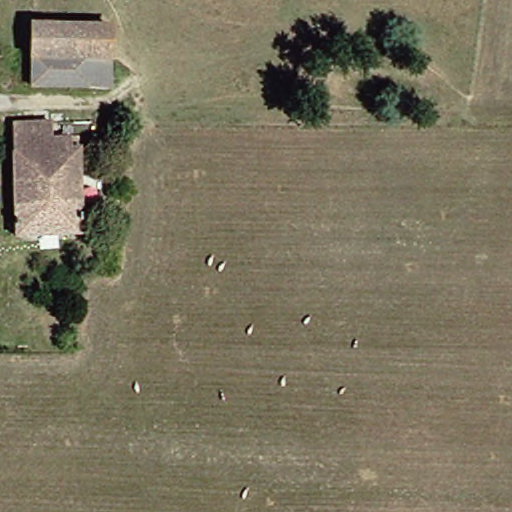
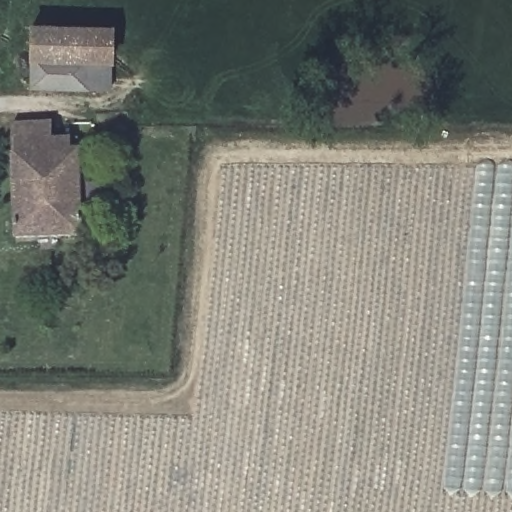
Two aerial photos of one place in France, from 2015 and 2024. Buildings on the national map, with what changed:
unchanged [(37,82),(40,21),(117,25),(114,86),(37,82)]
unchanged [(58,136),(72,135),(72,146),(84,146),(89,232),(22,232),(15,120),(57,119),(58,136)]
new [(475,166),(512,166),(512,492),(445,487),(475,166)]

